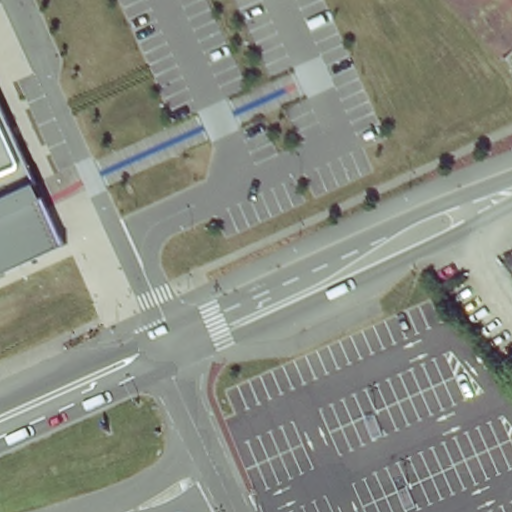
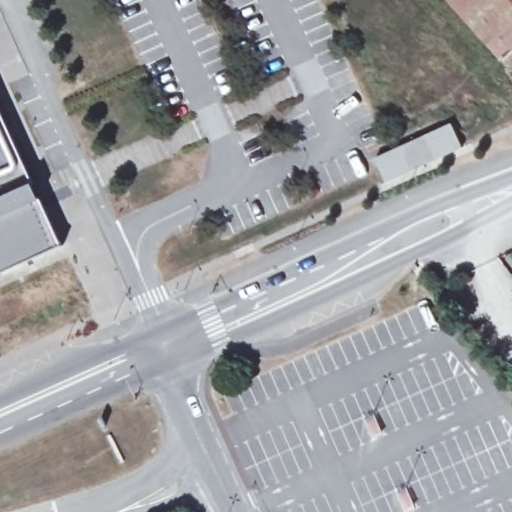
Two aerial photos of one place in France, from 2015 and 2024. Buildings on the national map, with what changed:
unchanged [(512,46),(500,56),(454,0),(512,0),(512,46)]
unchanged [(71,255),(0,289),(0,97),(71,255)]
new [(451,125),(462,150),(450,155),(385,183),(375,159),(431,134),(451,125)]

